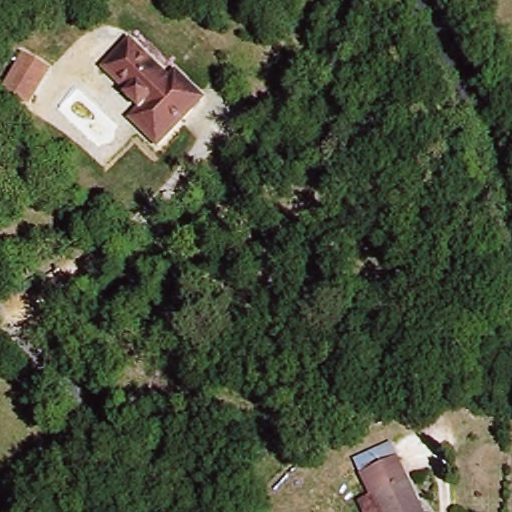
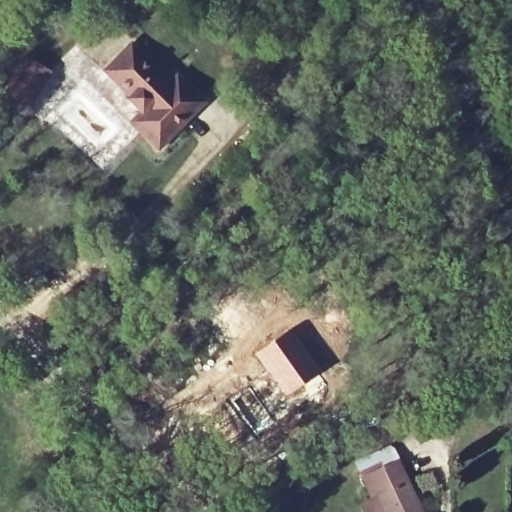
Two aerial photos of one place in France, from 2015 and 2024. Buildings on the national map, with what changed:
unchanged [(206,104),(189,119),(156,151),(128,122),(141,109),(105,70),(130,45),(168,84),(181,75),(206,104)]
unchanged [(0,71),(11,51),(38,65),(20,98),(0,87),(0,71)]
new [(291,329),(321,370),(303,384),(273,341),(291,329)]
new [(273,341),(303,384),(286,396),(254,353),(273,341)]
unchanged [(369,498),(360,477),(391,464),(415,512),(358,512),(355,503),(369,498)]

